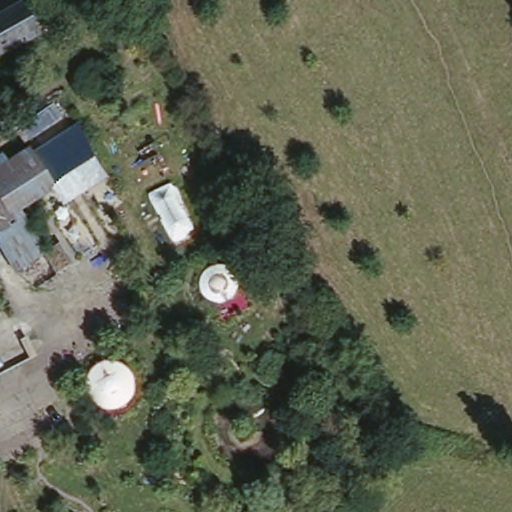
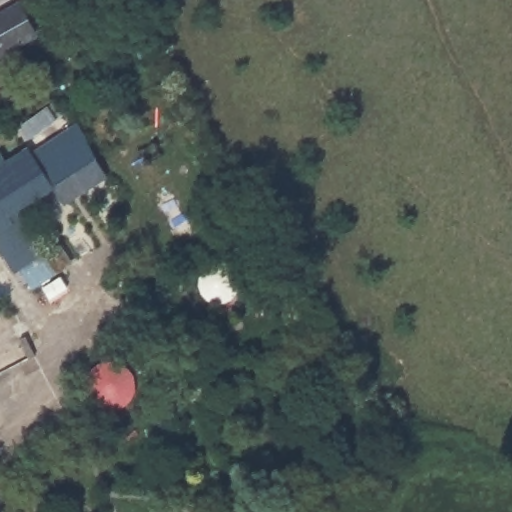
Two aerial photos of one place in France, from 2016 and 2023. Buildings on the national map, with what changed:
unchanged [(19,8),(36,39),(0,61),(0,18),(19,8)]
unchanged [(7,126),(55,98),(74,126),(27,159),(7,126)]
unchanged [(27,159),(74,126),(93,153),(46,186),(27,159)]
unchanged [(27,159),(46,186),(2,217),(0,213),(0,180),(6,175),(27,159)]
unchanged [(6,175),(0,180),(0,166),(6,175)]
unchanged [(2,217),(46,186),(81,235),(47,261),(17,281),(0,256),(0,249),(1,246),(0,244),(0,213),(2,217)]

